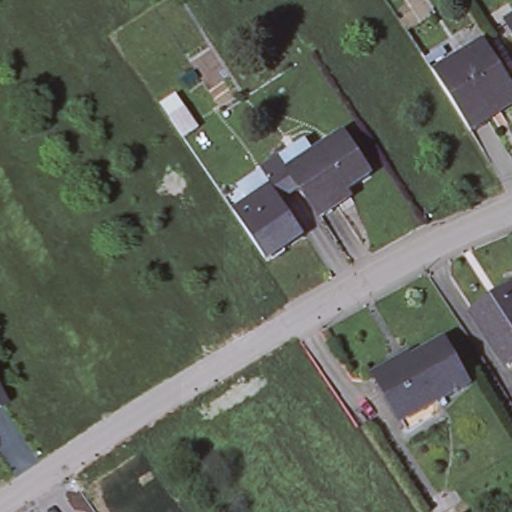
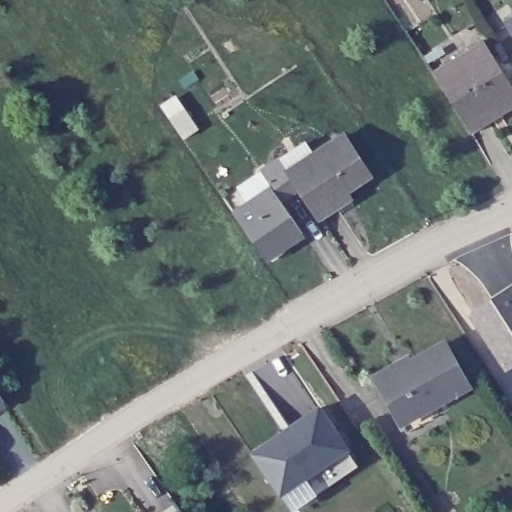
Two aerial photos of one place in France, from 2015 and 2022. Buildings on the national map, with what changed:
unchanged [(486,46),(512,89),(512,105),(501,113),(497,108),(492,111),(461,63),(486,46)]
unchanged [(439,83),(454,74),(452,68),(461,63),(492,111),(467,127),(439,83)]
unchanged [(186,139),(173,119),(164,108),(178,99),(187,110),(199,129),(186,139)]
unchanged [(372,176),(339,198),(338,199),(341,204),(321,218),(301,187),(299,189),(283,199),(283,200),(306,234),(268,259),(236,213),(274,188),(264,172),(281,161),(283,159),(291,172),(313,158),(346,135),(372,176)]
unchanged [(512,288),(512,310),(502,294),(512,288)]
unchanged [(471,305),(490,293),(494,299),(502,294),(512,310),(512,354),(505,358),(471,305)]
unchanged [(422,354),(442,342),(468,384),(449,396),(422,354)]
unchanged [(409,433),(404,424),(399,416),(374,378),(394,365),(398,369),(422,354),(449,396),(431,408),(436,417),(409,433)]
unchanged [(8,400),(0,405),(0,388),(8,400)]
new [(320,407),(348,449),(281,493),(253,451),(320,407)]
new [(348,449),(359,466),(291,509),(281,493),(348,449)]
new [(175,501),(181,509),(184,512),(159,512),(175,501)]

